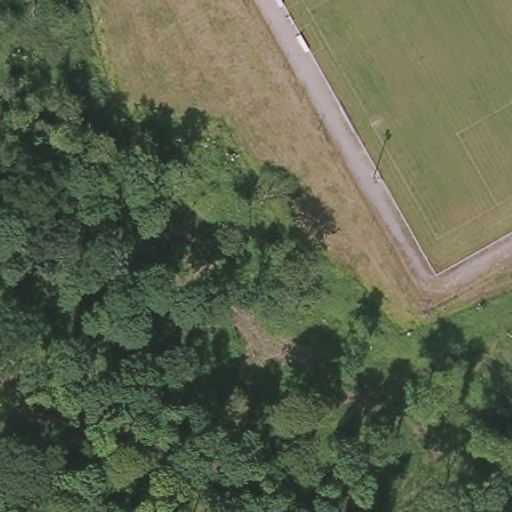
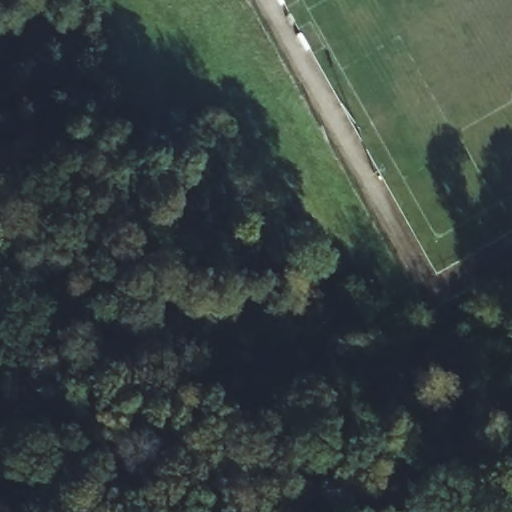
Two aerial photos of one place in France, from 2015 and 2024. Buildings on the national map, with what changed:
[]

